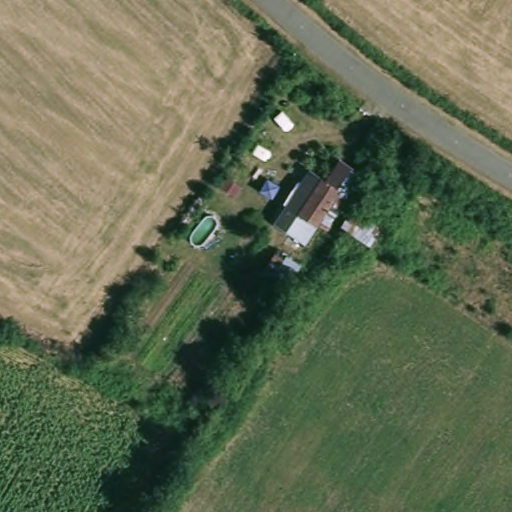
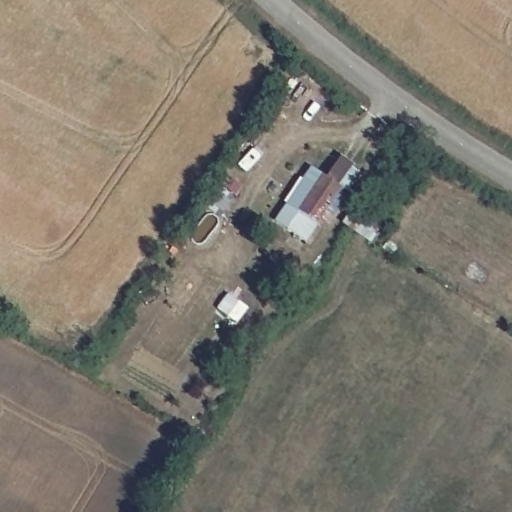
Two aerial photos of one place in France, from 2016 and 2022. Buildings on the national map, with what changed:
unchanged [(287,226),(296,211),(320,176),(338,188),(316,223),(311,220),(301,235),(287,226)]

